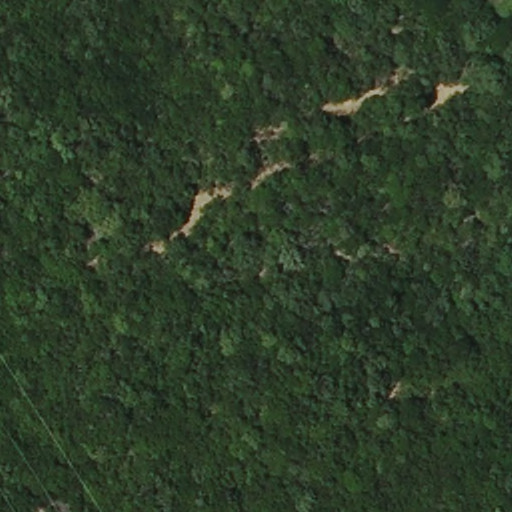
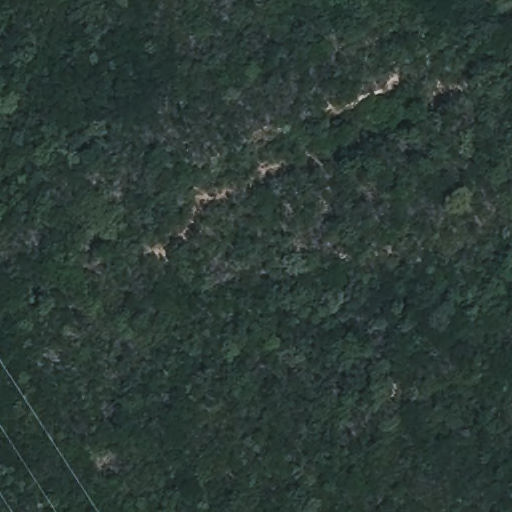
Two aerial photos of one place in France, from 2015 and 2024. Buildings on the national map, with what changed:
[]

